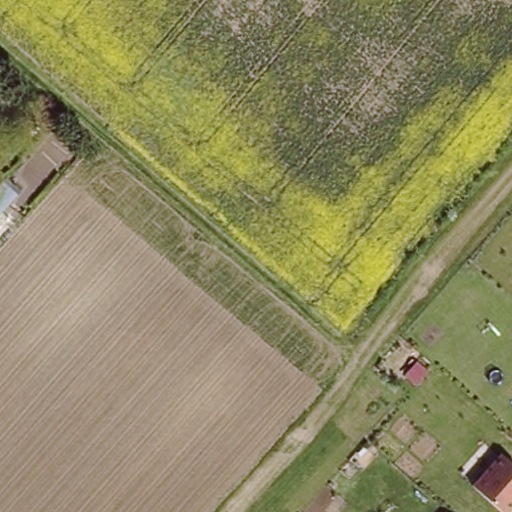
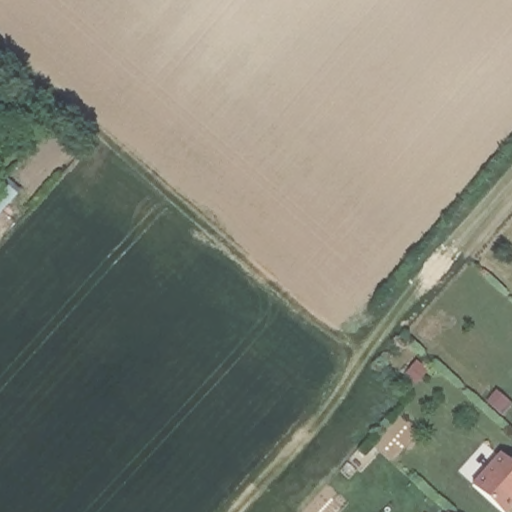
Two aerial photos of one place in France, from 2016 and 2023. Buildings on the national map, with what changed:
unchanged [(0,213),(0,183),(2,181),(16,193),(0,213)]
unchanged [(509,512),(502,512),(470,484),(500,453),(512,464),(512,508),(509,512)]

